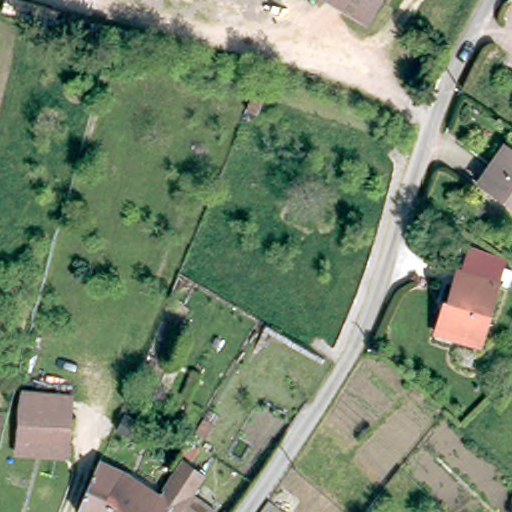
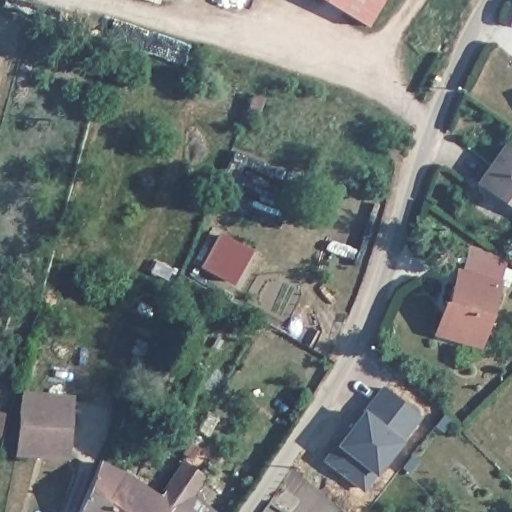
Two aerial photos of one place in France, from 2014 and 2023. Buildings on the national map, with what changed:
unchanged [(354,24),(317,0),(369,0),(354,24)]
unchanged [(512,211),(479,191),(501,153),(512,160),(512,211)]
new [(218,232),(252,249),(233,284),(201,267),(218,232)]
unchanged [(458,267),(463,269),(471,244),(504,255),(497,279),(477,342),(438,330),(432,328),(441,298),(448,300),(458,267)]
new [(334,441),(334,444),(363,408),(380,385),(421,417),(404,440),(376,476),(361,493),(321,461),(334,441)]
unchanged [(131,387),(146,393),(138,414),(123,408),(131,387)]
unchanged [(19,438),(20,413),(71,415),(70,440),(19,438)]
unchanged [(0,428),(0,415),(4,416),(0,428)]
unchanged [(84,512),(81,510),(92,486),(103,461),(127,474),(122,483),(148,498),(156,505),(159,507),(166,512),(84,512)]
unchanged [(184,463),(205,477),(194,496),(215,512),(166,512),(159,507),(156,505),(163,495),(184,463)]

